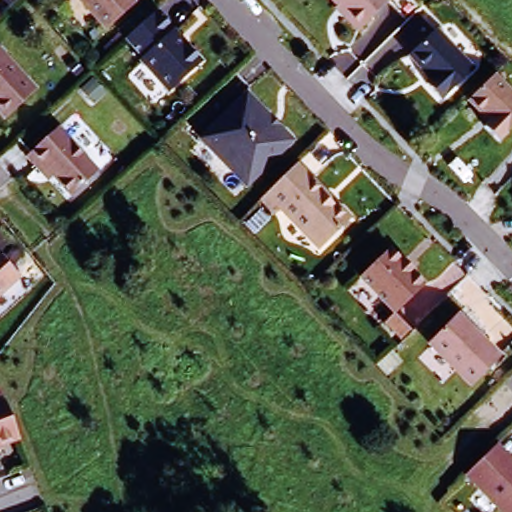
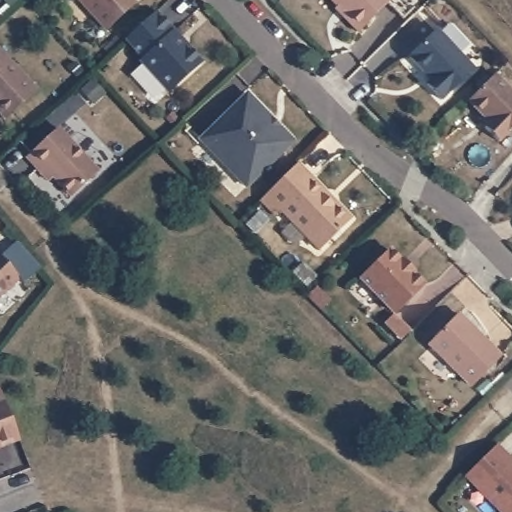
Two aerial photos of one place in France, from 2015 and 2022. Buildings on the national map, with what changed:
unchanged [(126,0),(129,3),(100,30),(73,0),(126,0)]
unchanged [(349,31),(338,19),(341,17),(325,0),(379,0),(381,2),(349,31)]
unchanged [(150,11),(168,31),(165,33),(176,46),(179,46),(195,62),(163,92),(134,61),(138,58),(120,39),(150,11)]
unchanged [(469,69),(436,101),(422,86),(427,80),(404,58),(432,31),(469,69)]
unchanged [(0,119),(0,56),(31,90),(0,119)]
unchanged [(494,79),(512,97),(512,132),(498,146),(484,132),(489,127),(468,105),(494,79)]
unchanged [(241,99),(286,145),(241,191),(194,145),(241,99)]
unchanged [(93,172),(66,197),(38,166),(33,170),(23,158),(53,130),(93,172)]
unchanged [(283,177),(291,169),(319,197),(316,200),(327,211),(330,208),(344,223),(314,253),(274,213),(269,219),(254,205),(283,177)]
unchanged [(354,279),(383,250),(395,263),(397,261),(407,272),(405,273),(418,286),(389,314),(354,279)]
unchanged [(0,265),(12,278),(0,289),(0,265)]
unchanged [(454,318),(495,361),(466,390),(424,348),(454,318)]
unchanged [(0,448),(0,393),(18,441),(0,448)]
unchanged [(459,480),(489,451),(512,475),(512,512),(490,512),(459,480)]

